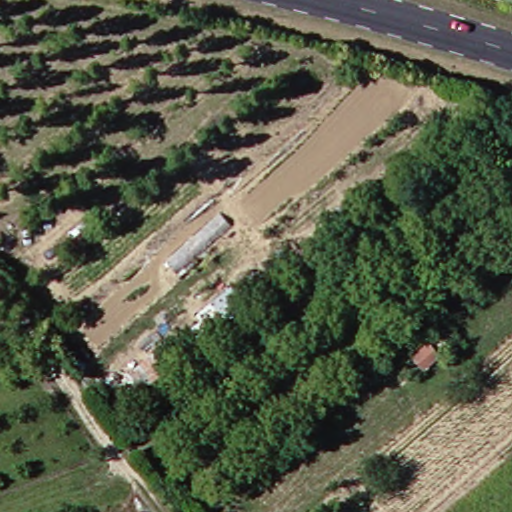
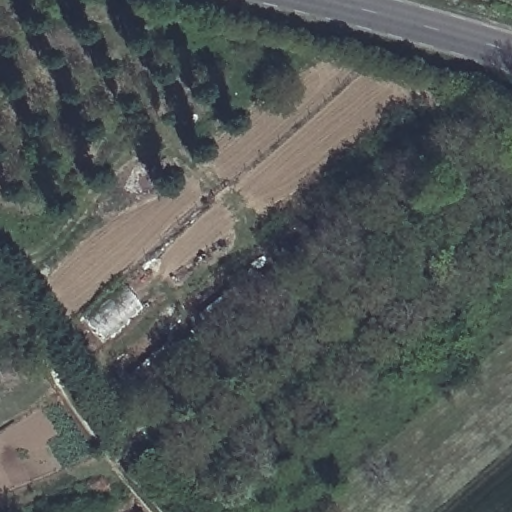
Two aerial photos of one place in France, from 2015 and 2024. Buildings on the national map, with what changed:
[]

